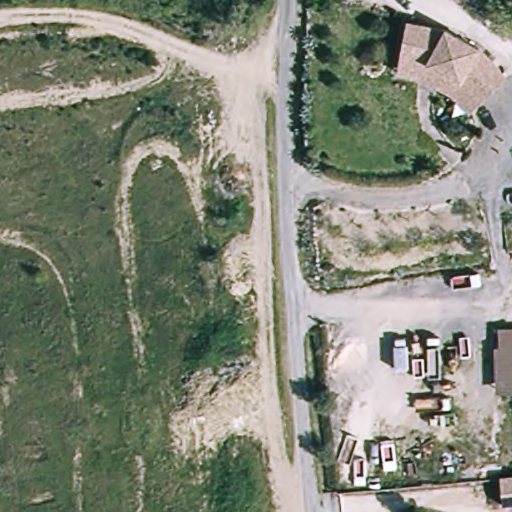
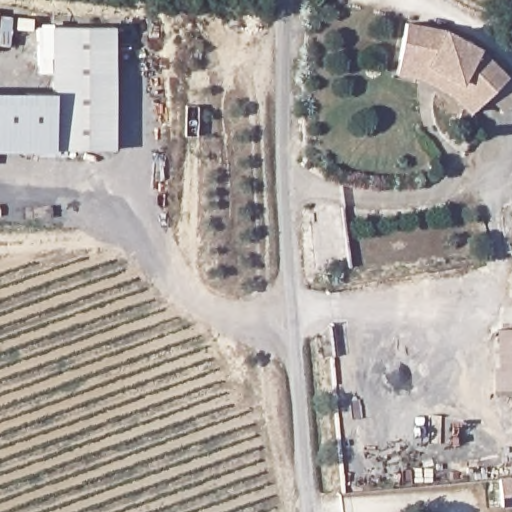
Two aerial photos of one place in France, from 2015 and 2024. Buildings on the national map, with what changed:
new [(116,27),(115,149),(53,147),(54,151),(0,151),(0,93),(50,93),(51,57),(40,58),(41,24),(53,24),(53,27),(116,27)]
unchanged [(464,82),(449,73),(449,70),(400,60),(406,24),(453,33),(482,49),(512,79),(512,82),(490,105),(464,82)]
unchanged [(436,83),(398,75),(399,63),(400,60),(449,70),(449,73),(464,82),(490,105),(479,116),(459,100),(449,92),(436,83)]
unchanged [(492,387),(492,321),(512,322),(512,389),(492,387)]

